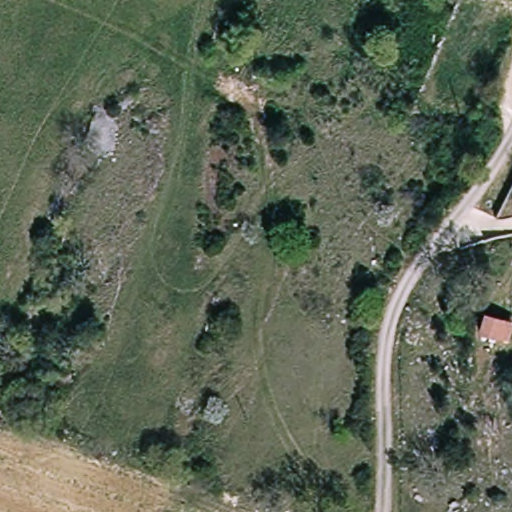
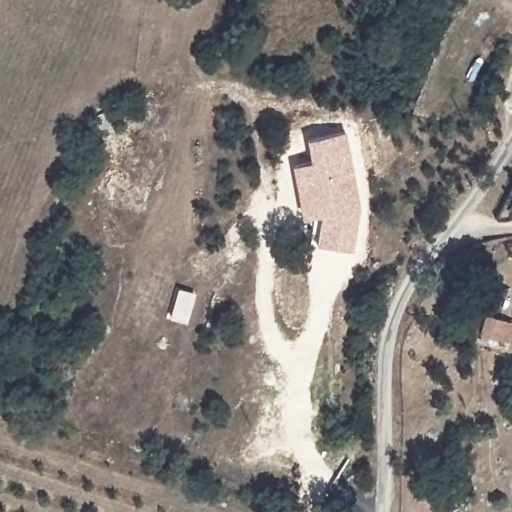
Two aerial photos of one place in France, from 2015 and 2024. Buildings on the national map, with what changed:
new [(355,251),(317,246),(321,217),(304,220),(292,165),(310,162),(306,140),(346,131),(362,209),(355,251)]

